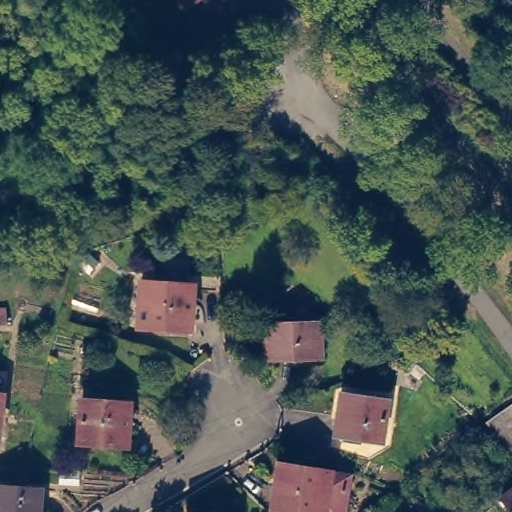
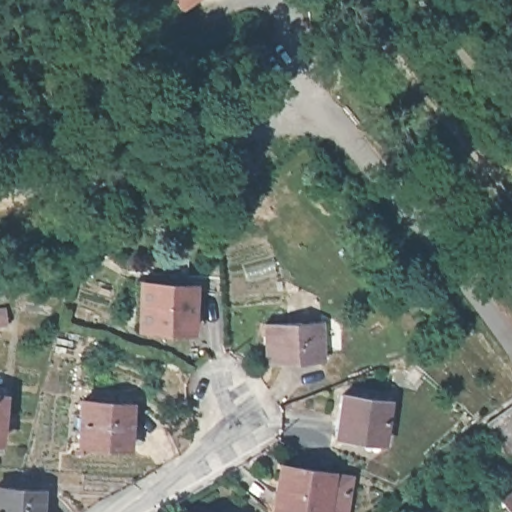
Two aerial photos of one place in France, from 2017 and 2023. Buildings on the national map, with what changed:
unchanged [(187,9),(180,0),(198,0),(187,9)]
unchanged [(92,280),(76,265),(89,252),(104,266),(92,280)]
unchanged [(134,330),(137,283),(187,286),(184,331),(134,330)]
unchanged [(6,326),(0,327),(0,310),(4,310),(6,326)]
unchanged [(270,320),(325,319),(326,355),(271,356),(270,320)]
unchanged [(421,377),(415,385),(407,379),(412,371),(412,370),(419,360),(430,369),(422,378),(421,377)]
unchanged [(2,443),(0,443),(0,387),(9,388),(2,443)]
unchanged [(341,390),(389,397),(382,438),(335,431),(341,390)]
unchanged [(126,443),(79,440),(82,396),(129,400),(126,443)]
unchanged [(490,420),(512,405),(512,456),(490,420)]
unchanged [(337,471),(335,485),(347,487),(343,512),(312,512),(273,506),(280,460),(330,468),(329,470),(337,471)]
unchanged [(44,512),(0,512),(0,488),(46,491),(44,512)]
unchanged [(509,512),(500,500),(512,491),(512,512),(509,512)]
unchanged [(197,512),(186,512),(186,511),(197,512)]

